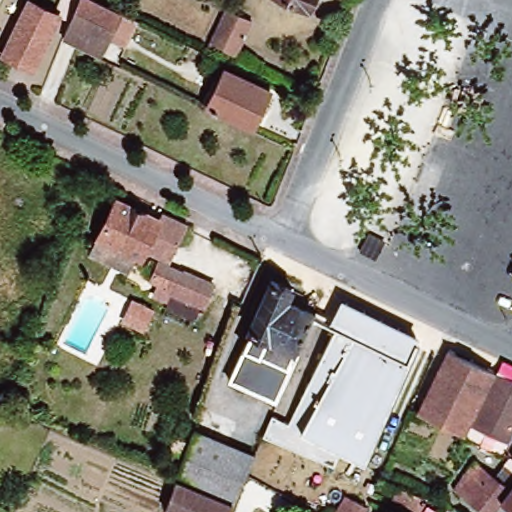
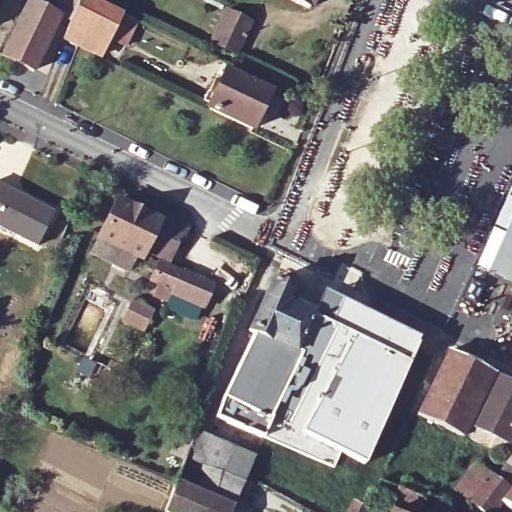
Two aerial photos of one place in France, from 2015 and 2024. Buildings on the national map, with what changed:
unchanged [(66,21),(57,16),(31,70),(0,55),(27,2),(55,15),(61,0),(74,0),(66,21)]
unchanged [(72,45),(60,39),(66,21),(74,0),(90,0),(132,20),(126,34),(121,32),(108,64),(72,45)]
unchanged [(310,14),(280,0),(316,0),(310,14)]
unchanged [(231,15),(250,25),(235,55),(210,43),(225,12),(231,15)]
unchanged [(210,107),(228,70),(271,92),(252,130),(210,107)]
new [(472,266),(512,180),(512,284),(472,266)]
new [(38,245),(0,227),(0,184),(55,211),(38,245)]
unchanged [(119,270),(88,256),(92,249),(95,241),(113,202),(134,212),(157,222),(140,261),(132,258),(126,273),(119,270)]
unchanged [(169,310),(174,296),(175,292),(170,290),(150,283),(157,265),(179,272),(217,286),(208,309),(206,308),(201,322),(169,310)]
unchanged [(268,282),(300,296),(301,293),(306,295),(303,304),(313,308),(272,403),(229,385),(250,335),(246,333),(268,282)]
unchanged [(333,464),(263,433),(270,417),(291,425),(335,325),(333,324),(342,302),(420,335),(389,402),(362,460),(339,450),(333,464)]
unchanged [(449,355),(492,375),(462,441),(418,421),(449,355)]
unchanged [(471,428),(495,377),(512,385),(512,435),(507,445),(471,428)]
unchanged [(239,497),(235,507),(233,506),(213,498),(181,484),(175,481),(192,433),(228,448),(255,460),(248,476),(247,479),(239,497)]
unchanged [(501,459),(507,445),(512,435),(512,464),(501,459)]
unchanged [(508,512),(498,505),(494,512),(478,512),(466,503),(452,493),(469,470),(483,480),(505,497),(512,487),(512,512),(508,512)]
unchanged [(398,502),(391,499),(397,486),(422,498),(417,511),(398,502)]
unchanged [(233,506),(231,512),(208,512),(213,498),(233,506)]
unchanged [(365,510),(365,512),(336,512),(343,498),(365,510)]

